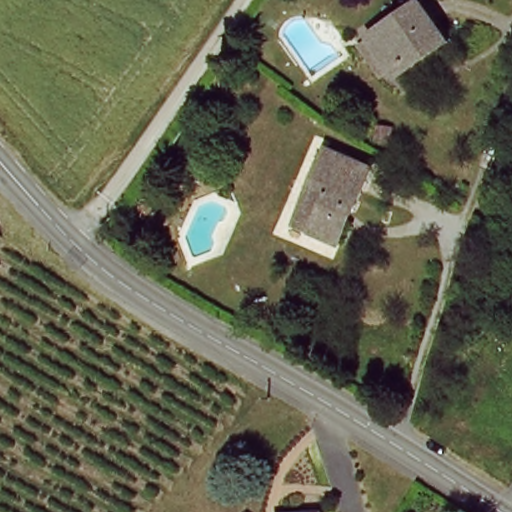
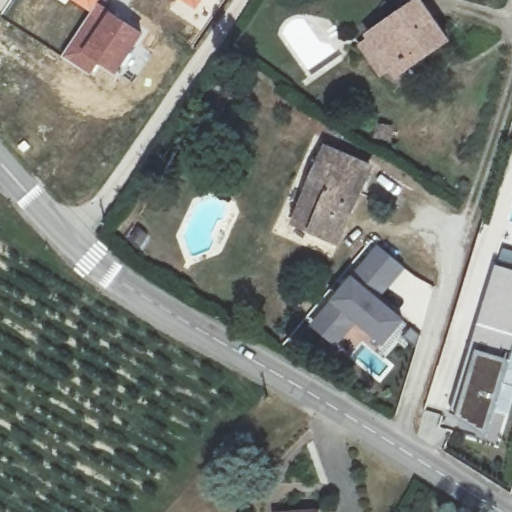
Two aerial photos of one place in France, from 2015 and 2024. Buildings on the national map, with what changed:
new [(98,1),(90,12),(72,0),(99,0),(98,1)]
new [(197,11),(181,0),(205,0),(197,11)]
unchanged [(366,44),(378,35),(374,29),(418,0),(425,0),(455,41),(404,74),(397,63),(386,71),(366,44)]
new [(90,12),(98,1),(144,34),(117,77),(99,66),(91,77),(59,56),(90,12)]
unchanged [(371,168),(338,238),(302,224),(310,203),(301,199),(326,146),(371,168)]
new [(333,301),(353,277),(381,245),(407,268),(381,299),(408,321),(385,347),(358,323),(338,348),(313,325),(333,301)]
new [(504,351),(501,359),(511,362),(488,435),(459,416),(479,353),(472,351),(498,266),(512,270),(512,353),(504,351)]

